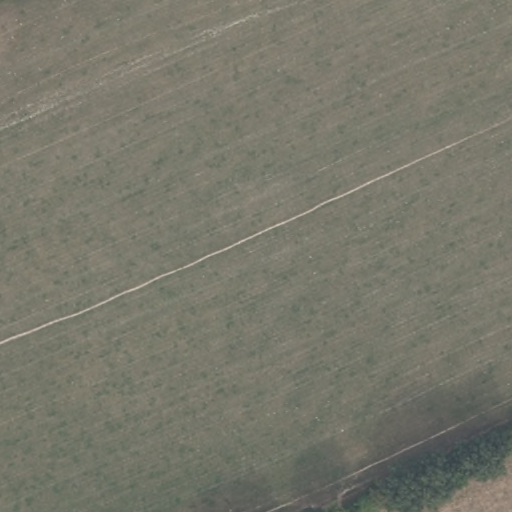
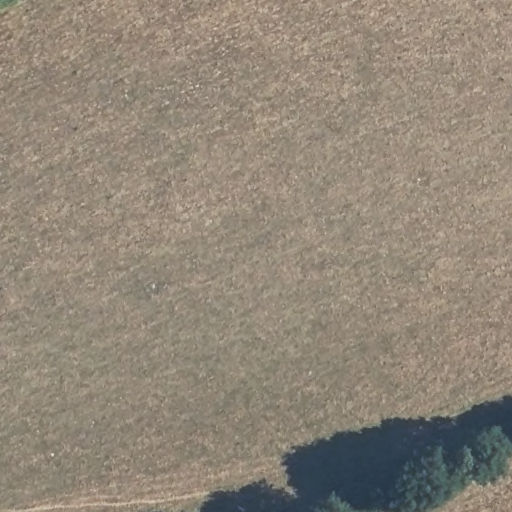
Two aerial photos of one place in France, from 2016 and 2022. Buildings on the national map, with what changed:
[]

